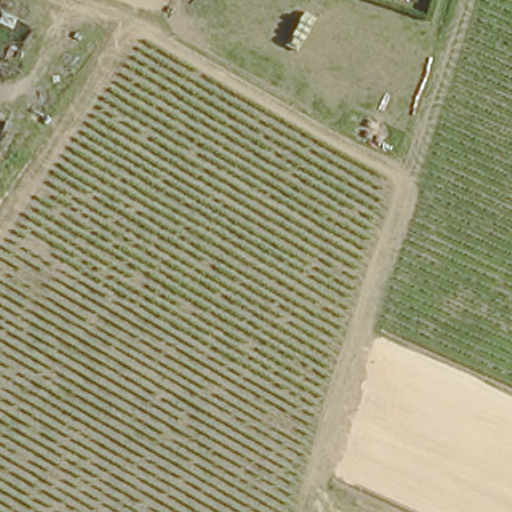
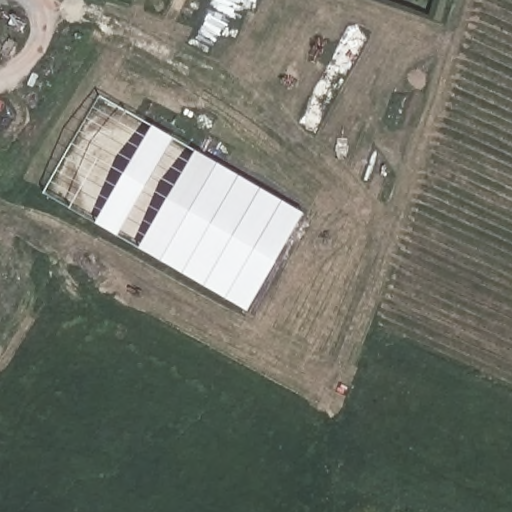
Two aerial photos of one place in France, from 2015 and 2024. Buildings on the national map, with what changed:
new [(303,213),(246,312),(43,195),(101,96),(303,213)]

